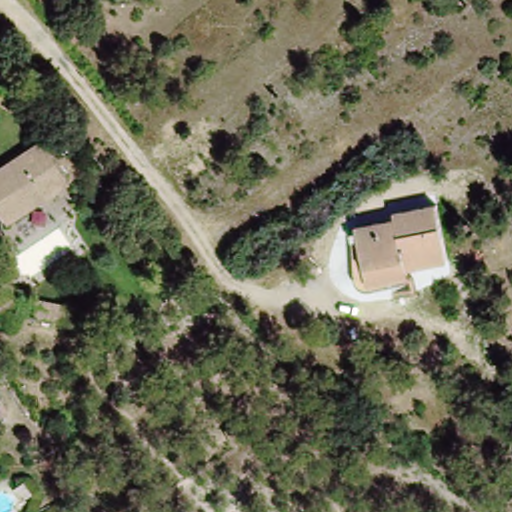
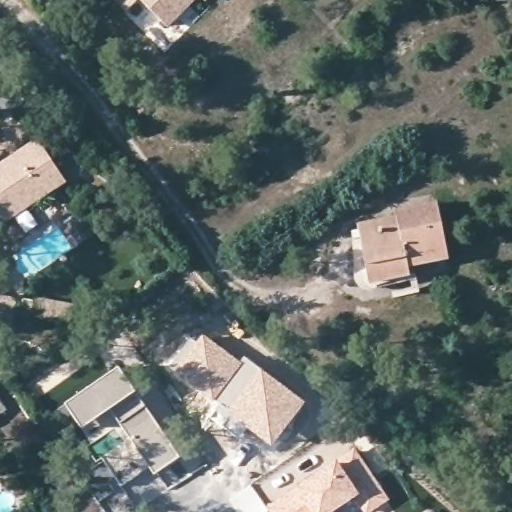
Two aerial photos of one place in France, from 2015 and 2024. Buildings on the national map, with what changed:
unchanged [(55,180),(0,216),(0,166),(32,145),(55,180)]
unchanged [(409,271),(410,280),(369,287),(358,230),(398,222),(397,216),(438,208),(449,263),(409,271)]
unchanged [(0,307),(0,296),(17,300),(15,310),(0,307)]
new [(202,332),(243,363),(212,404),(166,367),(202,332)]
new [(243,363),(246,359),(305,402),(271,448),(212,404),(243,363)]
new [(118,366),(136,391),(109,412),(81,431),(63,404),(118,366)]
new [(136,391),(181,457),(151,479),(146,472),(149,470),(109,412),(136,391)]
new [(353,446),(388,500),(370,512),(361,512),(353,500),(359,495),(336,457),(353,446)]
new [(359,495),(353,500),(336,512),(268,512),(268,511),(265,512),(237,512),(228,497),(250,482),(265,506),(336,457),(359,495)]

